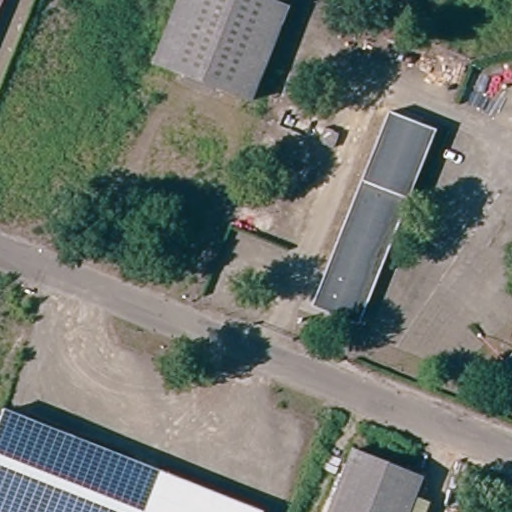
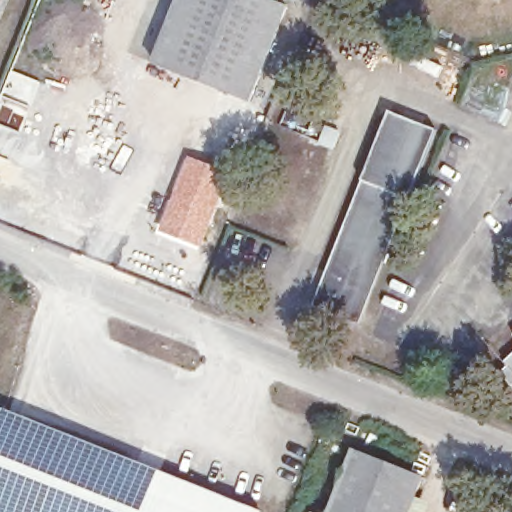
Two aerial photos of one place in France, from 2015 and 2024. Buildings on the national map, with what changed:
unchanged [(0,3),(0,0),(1,0),(0,3)]
unchanged [(284,14),(249,102),(151,65),(177,0),(248,0),(284,14)]
unchanged [(359,316),(333,306),(330,315),(312,308),(387,113),(434,131),(407,200),(404,199),(359,316)]
new [(187,155),(230,173),(200,247),(157,230),(187,155)]
unchanged [(510,348),(512,347),(512,351),(510,348)]
unchanged [(500,375),(512,364),(512,389),(500,375)]
unchanged [(258,512),(0,512),(0,420),(4,411),(258,512)]
unchanged [(416,482),(404,512),(324,512),(347,455),(416,482)]

